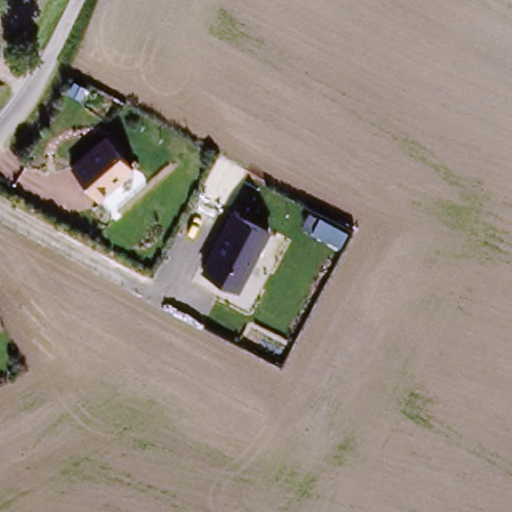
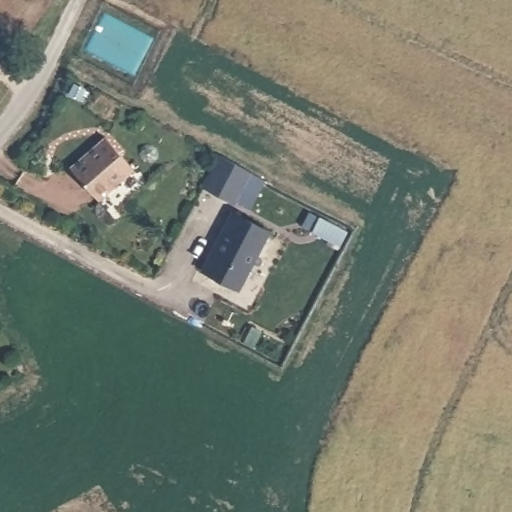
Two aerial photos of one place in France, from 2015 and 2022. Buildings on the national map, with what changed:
unchanged [(69,166),(105,136),(135,170),(98,201),(69,166)]
new [(221,154),(252,173),(235,204),(203,187),(221,154)]
unchanged [(239,291),(201,271),(232,211),(271,231),(239,291)]

